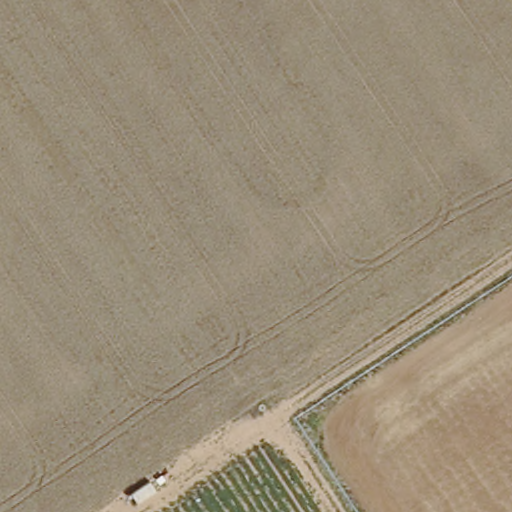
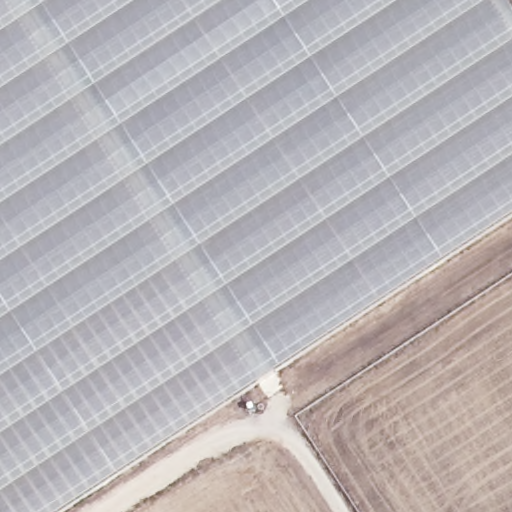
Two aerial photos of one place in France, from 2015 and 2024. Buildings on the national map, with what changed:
new [(0,512),(0,0),(506,0),(512,9),(512,221),(66,512),(0,512)]

